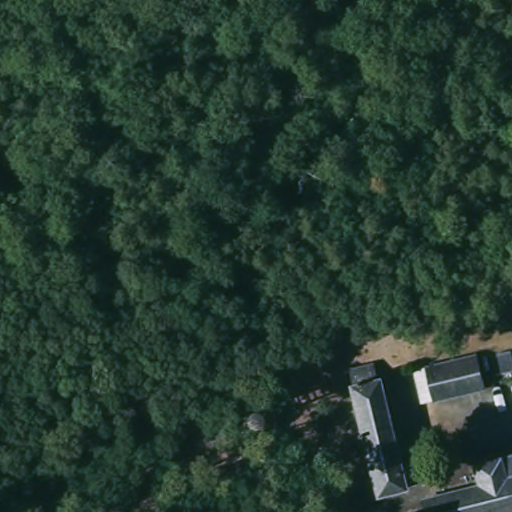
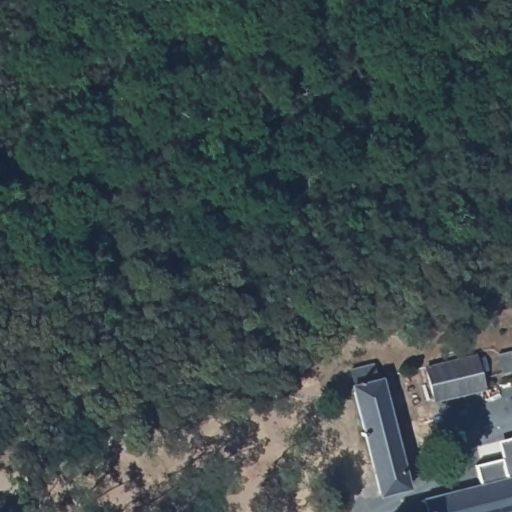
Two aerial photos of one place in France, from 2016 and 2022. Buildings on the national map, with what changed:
unchanged [(440,363),(469,355),(478,390),(429,402),(420,369),(440,363)]
unchanged [(410,489),(381,497),(352,388),(348,373),(370,367),(374,382),(381,380),(410,489)]
unchanged [(217,419),(224,440),(210,446),(203,425),(217,419)]
unchanged [(421,512),(419,504),(464,493),(463,487),(474,484),(471,471),(512,461),(512,512),(421,512)]

